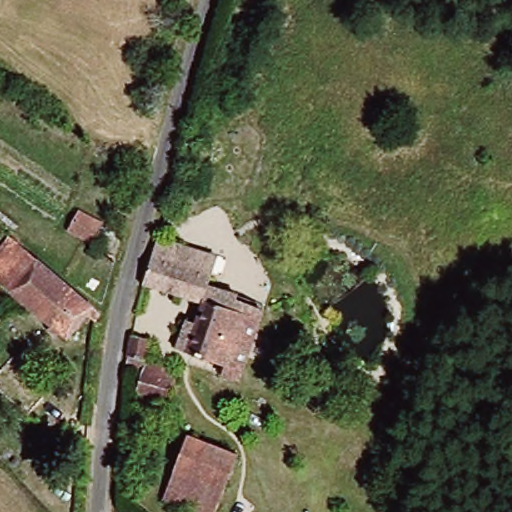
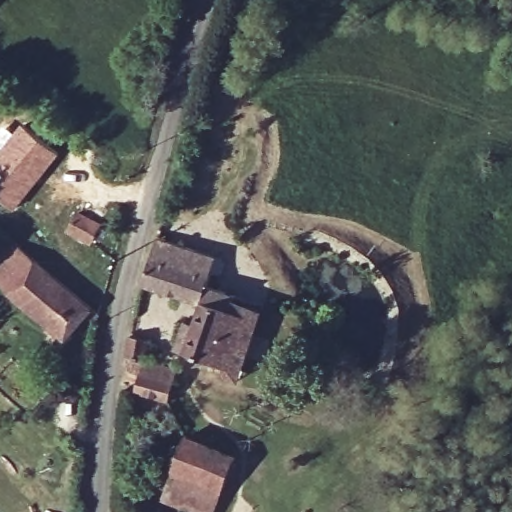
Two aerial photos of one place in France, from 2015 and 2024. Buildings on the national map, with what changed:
new [(12,132),(20,122),(61,153),(14,212),(0,200),(0,128),(2,125),(12,132)]
unchanged [(80,215),(100,227),(93,242),(71,231),(80,215)]
unchanged [(223,371),(225,362),(216,360),(186,352),(174,349),(181,320),(191,322),(197,302),(137,285),(151,238),(188,250),(210,256),(205,272),(202,283),(231,290),(241,293),(240,301),(245,302),(256,305),(240,376),(223,371)]
unchanged [(100,310),(93,318),(85,312),(60,340),(0,285),(0,256),(14,239),(100,310)]
unchanged [(0,313),(3,316),(0,319),(0,313)]
unchanged [(135,370),(122,367),(130,332),(145,336),(140,357),(171,364),(164,398),(131,391),(135,370)]
unchanged [(228,447),(215,512),(166,500),(180,436),(228,447)]

